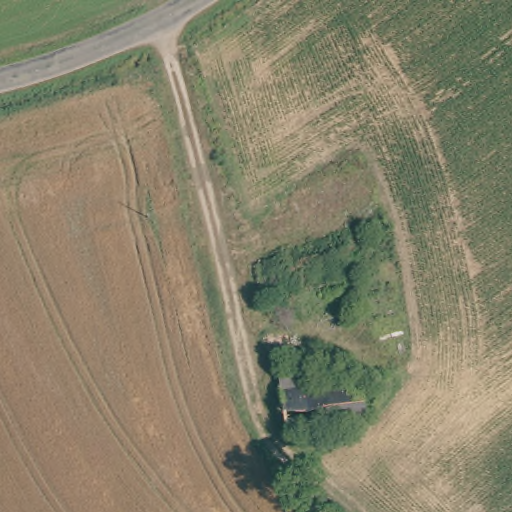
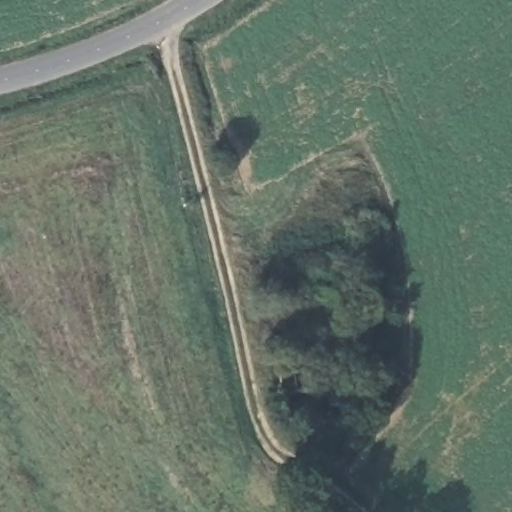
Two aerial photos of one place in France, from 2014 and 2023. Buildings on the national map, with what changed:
unchanged [(287,371),(315,370),(317,390),(358,387),(365,423),(294,426),(287,371)]

